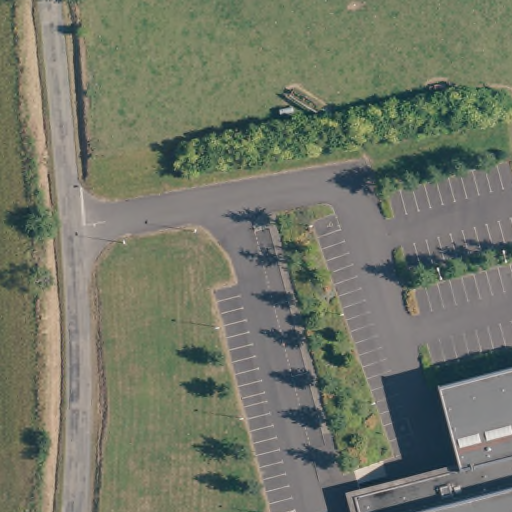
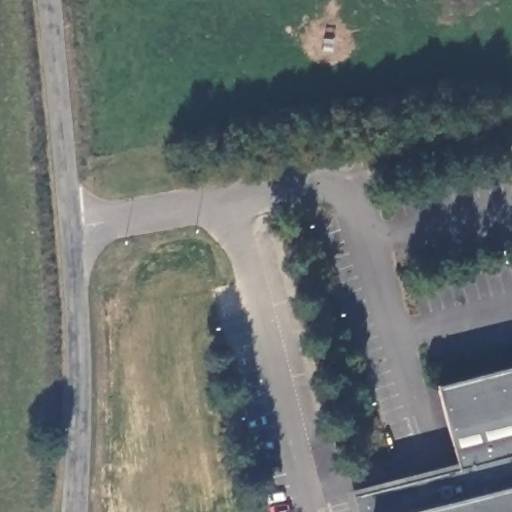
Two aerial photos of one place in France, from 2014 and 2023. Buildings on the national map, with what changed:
unchanged [(512,512),(356,512),(353,503),(456,472),(433,392),(512,368),(512,512)]

